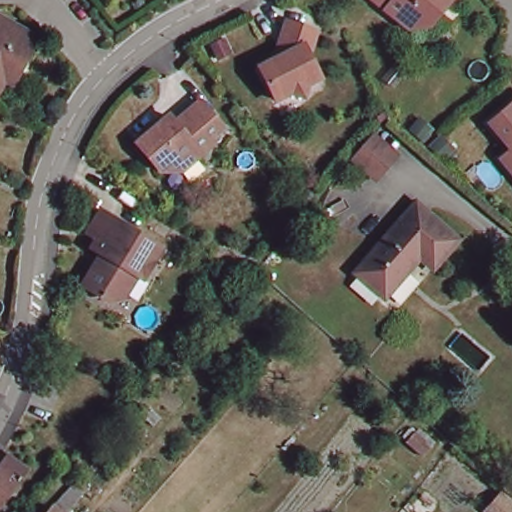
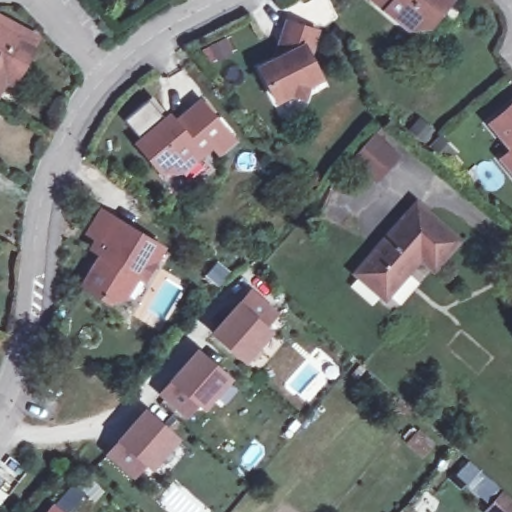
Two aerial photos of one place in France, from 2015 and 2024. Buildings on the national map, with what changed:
unchanged [(423,18),(401,17),(380,0),(438,0),(423,18)]
unchanged [(21,55),(17,54),(3,79),(0,77),(0,18),(32,37),(21,55)]
unchanged [(315,31),(308,56),(317,72),(303,79),(307,86),(301,97),(286,94),(275,100),(258,70),(275,62),(281,40),(285,23),(315,31)]
unchanged [(497,159),(507,151),(485,124),(512,103),(512,179),(497,159)]
unchanged [(201,110),(226,135),(213,149),(216,152),(187,181),(176,172),(167,182),(140,156),(170,125),(178,133),(201,110)]
unchanged [(353,159),(367,142),(388,160),(373,177),(353,159)]
unchanged [(415,209),(457,246),(433,275),(419,263),(383,303),(355,277),(415,209)]
unchanged [(145,281),(138,277),(125,297),(110,300),(84,283),(101,258),(95,254),(105,241),(93,233),(107,212),(120,220),(165,251),(145,281)]
new [(237,302),(250,288),(280,314),(268,327),(273,331),(246,364),(209,333),(237,302)]
new [(167,380),(195,348),(232,379),(204,410),(197,406),(187,419),(158,395),(167,380)]
new [(115,440),(144,407),(180,438),(152,473),(145,467),(135,478),(105,456),(115,440)]
unchanged [(417,428),(434,442),(420,458),(405,443),(417,428)]
unchanged [(0,502),(0,469),(16,482),(0,502)]
unchanged [(80,498),(67,512),(47,512),(68,487),(80,498)]
unchanged [(512,499),(512,512),(483,512),(501,491),(512,499)]

